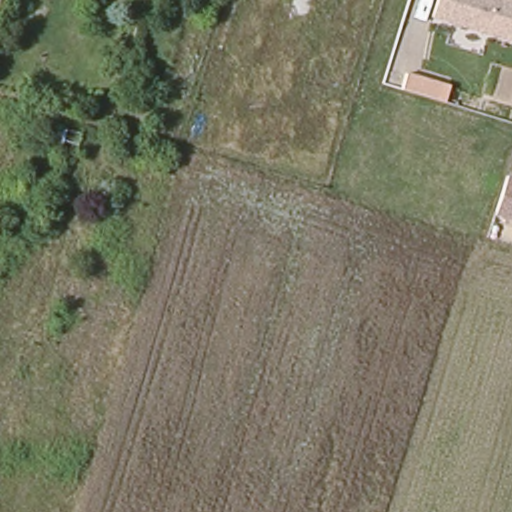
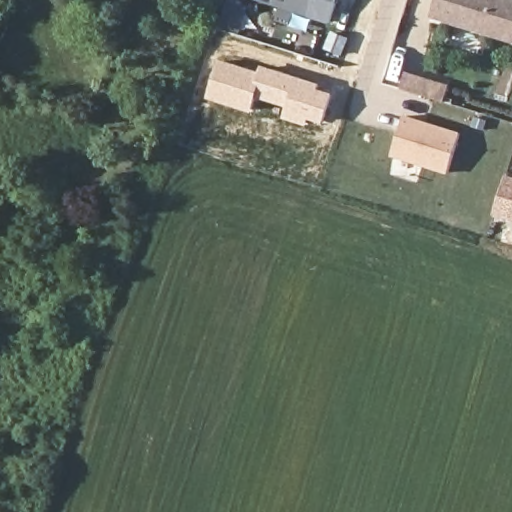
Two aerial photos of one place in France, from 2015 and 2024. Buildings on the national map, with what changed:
unchanged [(205,6),(194,2),(194,0),(207,0),(205,6)]
new [(243,34),(222,27),(230,0),(251,6),(243,34)]
new [(311,18),(255,0),(316,0),(311,18)]
unchanged [(512,44),(430,18),(437,0),(512,0),(512,44)]
new [(322,84),(321,89),(335,93),(325,124),(311,119),(308,126),(285,118),(287,106),(258,97),(253,112),(208,99),(221,59),(261,71),(263,65),(322,84)]
unchanged [(434,101),(400,91),(406,72),(441,82),(434,101)]
new [(462,132),(449,175),(393,157),(406,115),(462,132)]
unchanged [(512,220),(495,215),(507,176),(512,177),(512,220)]

